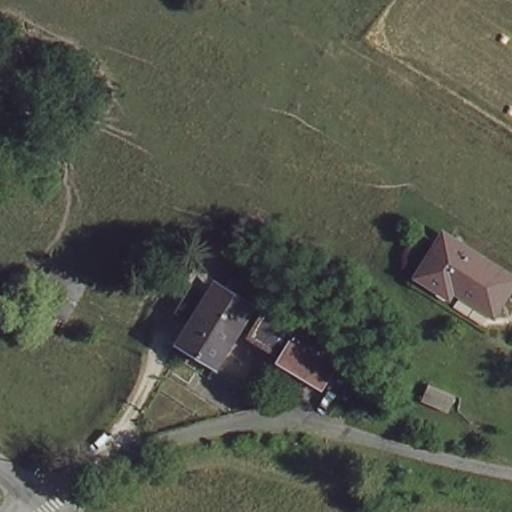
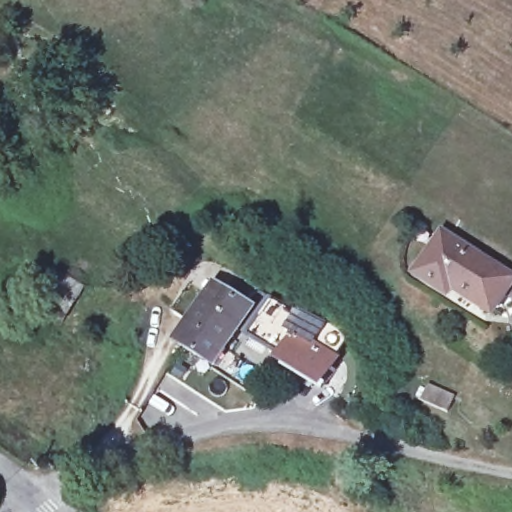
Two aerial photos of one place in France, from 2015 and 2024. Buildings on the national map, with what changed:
unchanged [(507,278),(486,314),(444,291),(442,296),(416,281),(439,238),(507,278)]
unchanged [(68,323),(30,308),(49,266),(86,284),(68,323)]
unchanged [(191,341),(203,320),(186,310),(205,276),(221,286),(259,308),(246,329),(226,362),(191,341)]
unchanged [(259,308),(268,292),(334,333),(347,345),(327,379),(246,329),(259,308)]
unchanged [(444,416),(419,405),(414,418),(381,403),(396,371),(424,384),(431,371),(459,384),(444,416)]

